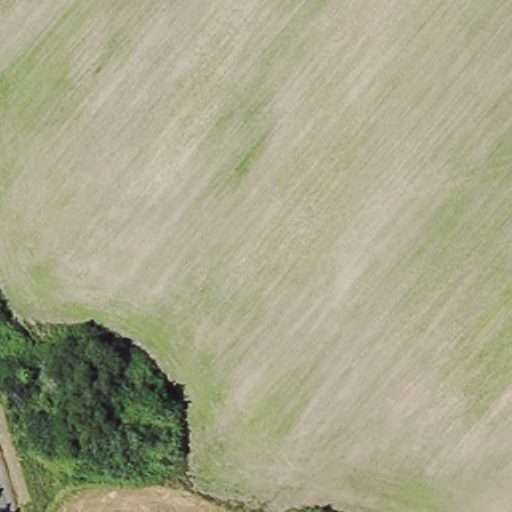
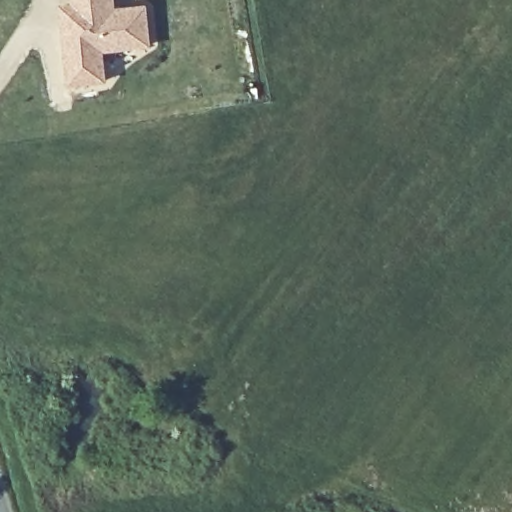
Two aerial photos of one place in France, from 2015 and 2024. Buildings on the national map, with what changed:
new [(116,8),(146,5),(150,44),(103,49),(106,79),(70,82),(65,20),(64,4),(76,2),(75,0),(115,0),(116,8)]

